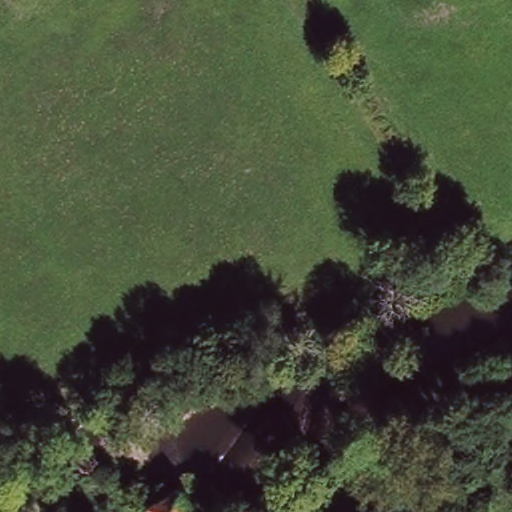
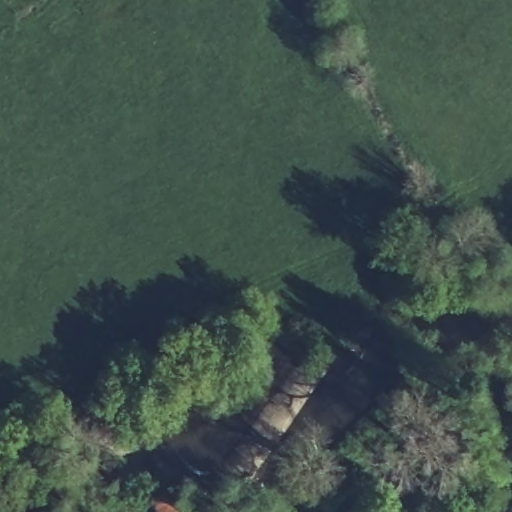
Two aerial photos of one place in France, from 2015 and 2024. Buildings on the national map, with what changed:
unchanged [(192,512),(153,512),(149,505),(181,489),(192,512)]

